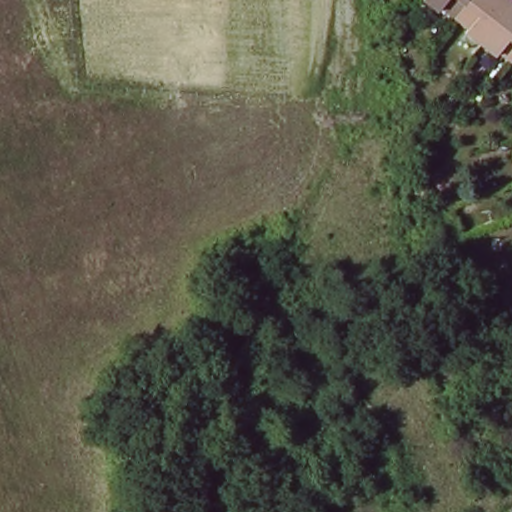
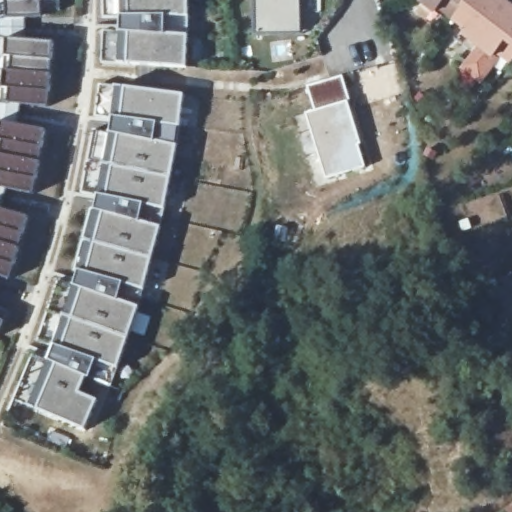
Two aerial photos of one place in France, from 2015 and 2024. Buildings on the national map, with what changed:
new [(6,42),(0,43),(0,19),(5,19),(5,0),(59,0),(59,11),(42,11),(42,16),(25,16),(25,41),(53,42),(48,106),(21,104),(18,125),(45,130),(33,194),(5,189),(1,209),(28,217),(10,278),(0,275),(0,102),(3,102),(6,42)]
new [(102,30),(116,30),(116,17),(104,17),(103,0),(189,0),(189,16),(188,34),(186,66),(128,63),(103,62),(102,30)]
new [(256,35),(256,0),(300,0),(301,34),(256,35)]
unchanged [(440,2),(436,7),(427,0),(463,0),(454,12),(440,2)]
unchanged [(463,27),(467,22),(454,12),(463,0),(509,0),(479,40),(463,27)]
unchanged [(511,57),(498,46),(494,51),(479,40),(509,0),(512,0),(512,56),(511,57)]
new [(343,77),(351,100),(348,101),(360,144),(359,145),(364,169),(325,180),(306,115),(316,112),(308,87),(343,77)]
new [(181,124),(176,142),(163,207),(160,225),(143,287),(138,307),(117,368),(108,386),(86,377),(80,395),(96,401),(80,432),(25,404),(15,399),(33,353),(43,357),(47,347),(36,342),(57,277),(70,282),(75,271),(96,196),(80,193),(93,129),(106,130),(108,121),(96,118),(100,82),(183,94),(181,124)]
new [(0,325),(0,308),(5,311),(0,325)]

